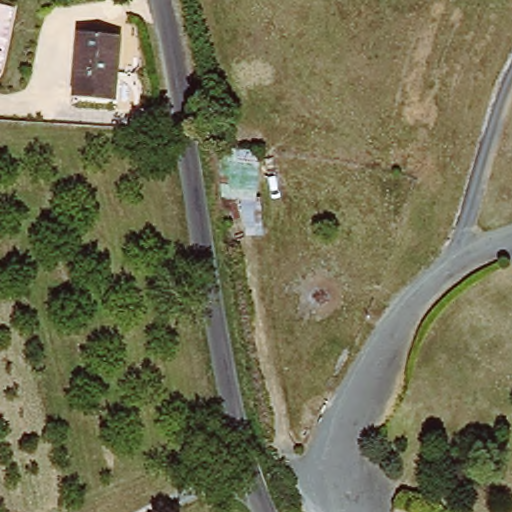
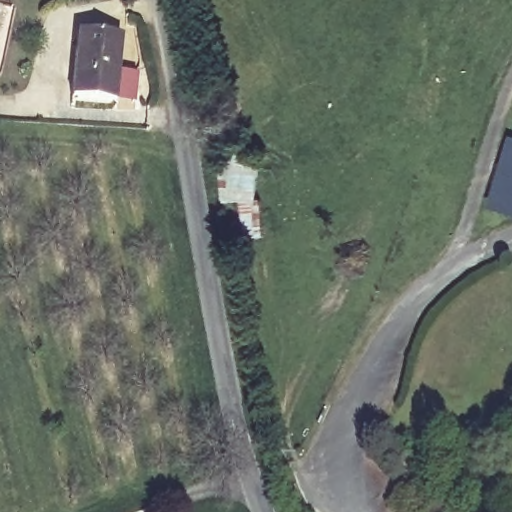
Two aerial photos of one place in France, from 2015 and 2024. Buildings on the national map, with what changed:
unchanged [(127,34),(121,102),(76,98),(82,30),(127,34)]
new [(512,136),(512,213),(489,206),(510,135),(512,136)]
unchanged [(265,152),(263,201),(226,200),(222,147),(265,152)]

